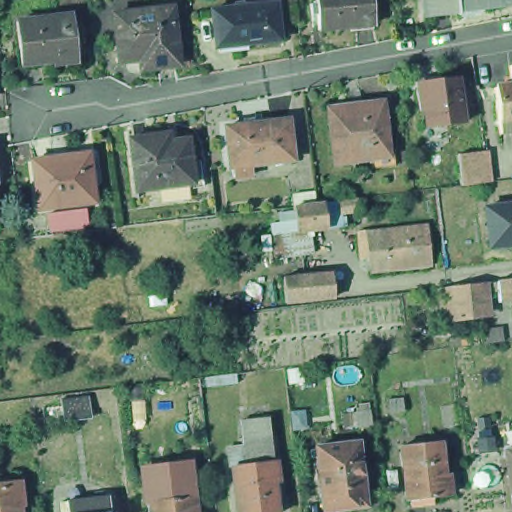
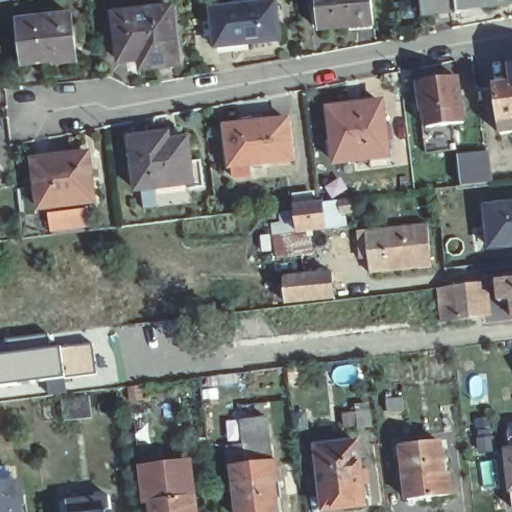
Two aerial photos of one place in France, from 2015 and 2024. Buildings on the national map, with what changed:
unchanged [(323,33),(320,0),(375,0),(378,28),(323,33)]
unchanged [(451,15),(420,19),(418,0),(507,0),(507,5),(451,12),(451,15)]
unchanged [(285,6),(290,44),(224,51),(220,12),(285,6)]
unchanged [(181,15),(188,73),(164,76),(163,66),(130,70),(125,22),(181,15)]
unchanged [(77,18),(82,66),(58,69),(58,65),(27,70),(22,26),(77,18)]
unchanged [(510,68),(512,68),(512,79),(510,68)]
unchanged [(460,81),(465,127),(431,131),(425,85),(460,81)]
unchanged [(512,87),(512,135),(500,137),(495,89),(512,87)]
unchanged [(382,107),(387,159),(334,165),(328,112),(382,107)]
unchanged [(283,122),(287,162),(225,170),(221,129),(283,122)]
unchanged [(150,139),(152,147),(185,142),(189,165),(199,163),(203,190),(188,192),(188,186),(135,193),(130,142),(150,139)]
unchanged [(94,153),(99,202),(45,207),(38,160),(94,153)]
unchanged [(492,154),(495,184),(465,187),(462,157),(488,155),(492,154)]
unchanged [(344,216),(327,217),(325,204),(343,202),(344,216)]
unchanged [(312,232),(282,235),(280,209),(306,206),(310,206),(312,232)]
unchanged [(512,208),(512,247),(494,250),(490,211),(512,208)]
unchanged [(367,235),(367,233),(427,227),(430,268),(370,276),(369,261),(360,262),(357,236),(367,235)]
unchanged [(333,274),(336,299),(285,307),(282,281),(333,274)]
unchanged [(503,306),(503,293),(492,296),(491,285),(512,282),(512,304),(503,306)]
unchanged [(486,320),(444,324),(440,291),(482,286),(486,320)]
new [(40,336),(42,350),(61,347),(62,354),(70,353),(68,348),(87,346),(90,368),(93,368),(94,373),(0,386),(0,355),(17,353),(15,340),(40,336)]
unchanged [(401,400),(402,413),(388,416),(387,402),(401,400)]
unchanged [(369,412),(370,427),(357,428),(355,414),(369,412)]
unchanged [(260,421),(266,466),(269,465),(272,486),(267,486),(270,512),(231,512),(227,470),(241,468),(236,425),(260,421)]
unchanged [(444,443),(445,461),(450,461),(453,497),(412,502),(407,447),(444,443)]
unchanged [(357,449),(364,512),(359,512),(321,512),(315,453),(357,449)]
unchanged [(512,498),(507,460),(512,459),(512,498)]
unchanged [(154,501),(155,506),(145,506),(141,465),(197,461),(202,496),(154,501)]
unchanged [(15,506),(18,505),(19,512),(0,512),(0,487),(13,486),(15,506)]
unchanged [(197,499),(198,512),(156,512),(155,504),(197,499)]
unchanged [(65,504),(72,503),(88,502),(89,512),(66,512),(65,504)]

